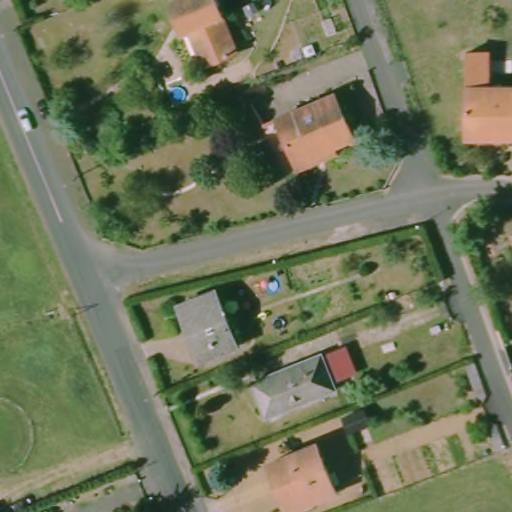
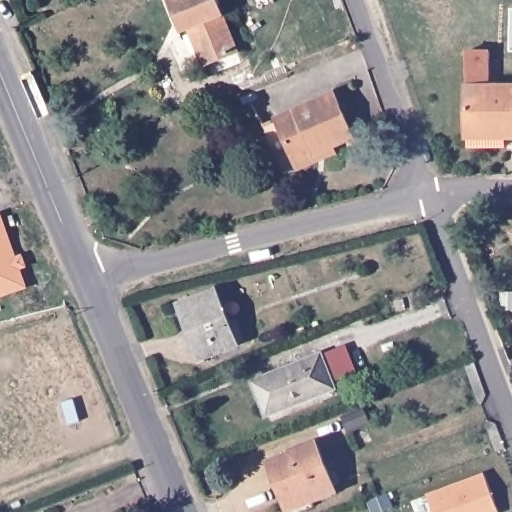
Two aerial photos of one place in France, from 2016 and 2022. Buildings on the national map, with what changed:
unchanged [(163,3),(172,0),(209,0),(230,52),(198,66),(184,31),(175,35),(172,25),(163,3)]
unchanged [(504,135),(504,128),(459,132),(457,88),(512,86),(512,135),(504,135)]
unchanged [(349,138),(289,162),(282,146),(268,152),(257,126),(331,93),(349,138)]
unchanged [(512,234),(512,241),(509,235),(512,234)]
new [(14,294),(0,299),(0,255),(14,294)]
unchanged [(230,340),(195,354),(173,303),(209,288),(230,340)]
unchanged [(511,326),(511,294),(512,294),(512,326),(511,326)]
unchanged [(317,384),(319,390),(253,416),(239,381),(325,347),(336,375),(317,384)]
unchanged [(328,486),(281,505),(263,458),(309,439),(328,486)]
new [(427,494),(484,472),(500,512),(433,512),(427,494)]

